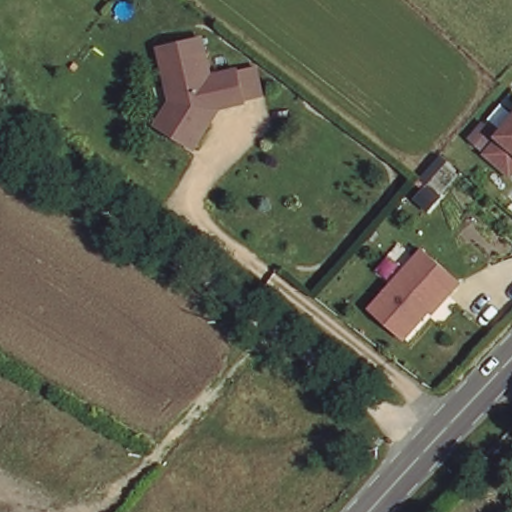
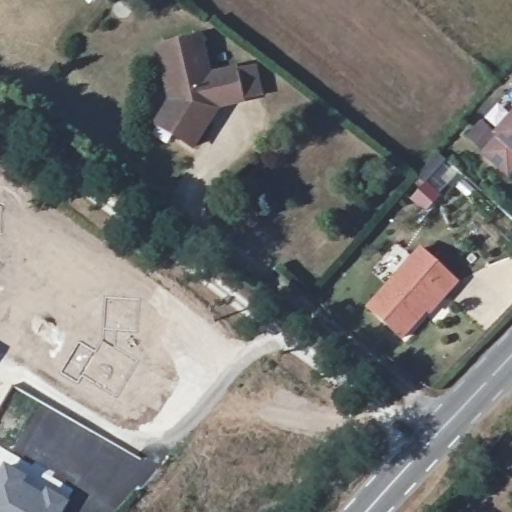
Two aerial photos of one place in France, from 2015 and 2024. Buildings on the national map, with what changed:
unchanged [(160,115),(170,100),(159,47),(201,37),(208,75),(234,69),(241,100),(208,107),(201,118),(206,121),(203,126),(191,146),(172,134),(155,122),(160,115)]
unchanged [(507,175),(484,153),(498,137),(496,136),(512,117),(512,169),(507,175)]
unchanged [(425,248),(459,282),(447,294),(445,292),(402,336),(370,304),(425,248)]
new [(32,474),(34,472),(75,492),(63,512),(0,512),(0,464),(3,460),(32,474)]

